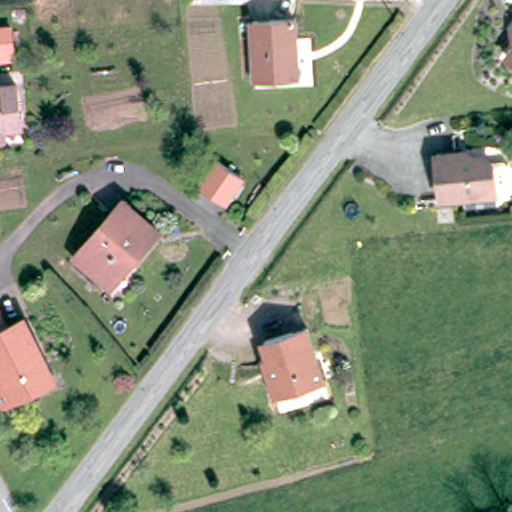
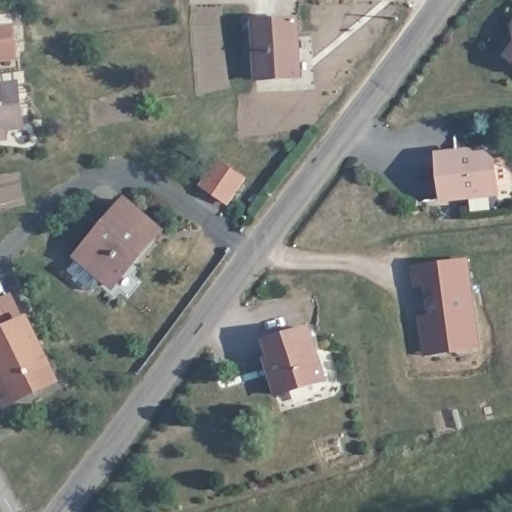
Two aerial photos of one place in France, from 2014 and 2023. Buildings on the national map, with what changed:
unchanged [(295,77),(253,79),(250,20),(290,18),(295,77)]
unchanged [(508,26),(512,21),(512,35),(509,33),(508,26)]
new [(14,22),(17,61),(0,62),(0,23),(14,22)]
unchanged [(512,63),(502,55),(512,41),(512,63)]
unchanged [(0,137),(0,82),(17,80),(24,122),(5,125),(7,136),(0,137)]
unchanged [(450,152),(461,151),(462,154),(478,153),(478,159),(487,158),(487,159),(499,158),(503,162),(505,185),(502,190),(490,191),(490,192),(435,198),(430,154),(450,152)]
unchanged [(240,178),(222,203),(198,186),(215,161),(240,178)]
unchanged [(113,288),(78,256),(126,200),(161,230),(113,288)]
new [(413,288),(410,264),(468,257),(480,349),(422,355),(417,316),(430,314),(426,287),(413,288)]
unchanged [(5,324),(25,314),(55,375),(0,402),(0,366),(0,312),(5,324)]
unchanged [(272,358),(267,340),(310,327),(327,379),(277,395),(271,373),(267,360),(272,358)]

